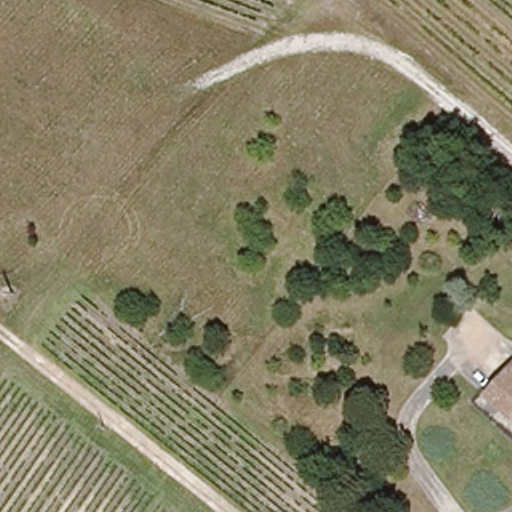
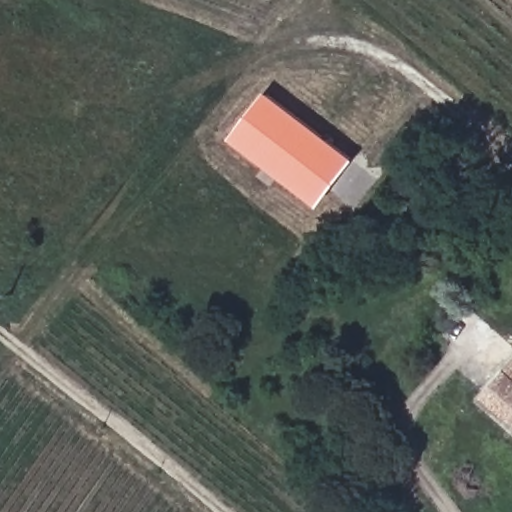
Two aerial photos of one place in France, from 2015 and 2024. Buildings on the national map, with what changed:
new [(231,139),(268,91),(358,160),(321,208),(231,139)]
unchanged [(491,396),(512,369),(512,414),(491,396)]

